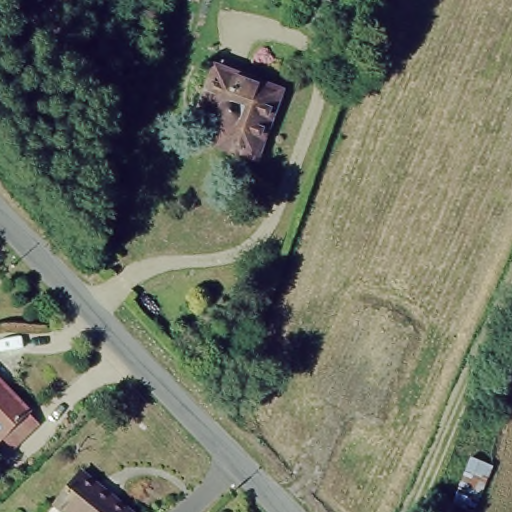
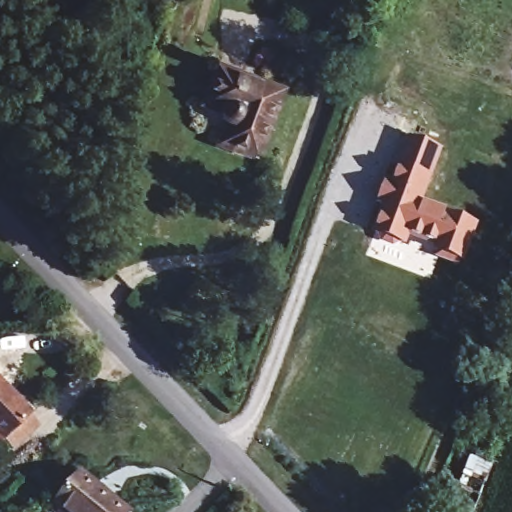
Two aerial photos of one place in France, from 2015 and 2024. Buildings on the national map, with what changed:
unchanged [(259,159),(208,144),(217,116),(193,107),(208,61),(284,87),(259,159)]
new [(424,202),(481,225),(463,270),(434,259),(439,247),(411,237),(407,246),(369,232),(404,136),(444,151),(424,202)]
unchanged [(0,439),(0,381),(28,411),(39,422),(13,449),(1,438),(0,439)]
unchanged [(449,500),(467,455),(488,464),(472,509),(449,500)]
unchanged [(54,491),(83,463),(129,511),(128,512),(75,512),(54,491)]

